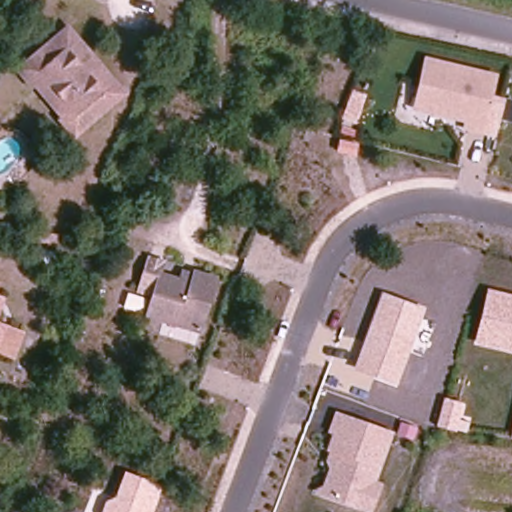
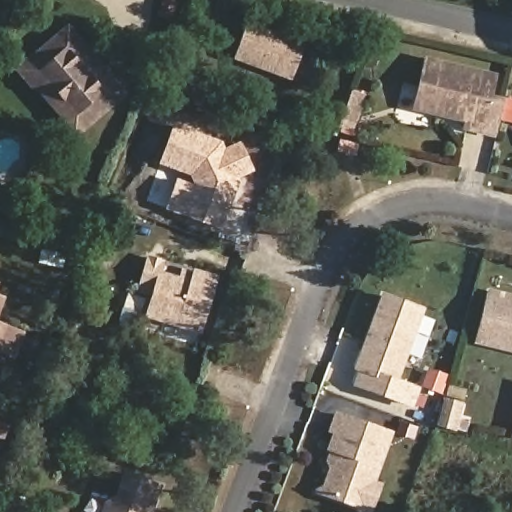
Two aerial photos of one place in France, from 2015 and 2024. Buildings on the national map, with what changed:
new [(290,82),(233,60),(248,20),(305,41),(290,82)]
unchanged [(89,98),(73,112),(36,71),(48,60),(38,48),(64,25),(119,93),(99,109),(89,98)]
unchanged [(70,134),(14,69),(38,48),(48,60),(36,71),(73,112),(89,98),(99,109),(70,134)]
unchanged [(464,132),(464,124),(413,112),(425,59),(496,76),(483,135),(464,132)]
new [(255,171),(240,178),(222,229),(165,210),(177,178),(193,184),(189,176),(159,165),(173,125),(223,142),(225,148),(241,141),(255,171)]
unchanged [(212,297),(199,334),(149,315),(158,293),(138,286),(143,272),(149,257),(174,269),(169,282),(169,284),(186,291),(187,288),(193,273),(217,282),(212,297)]
unchanged [(489,289),(512,295),(512,353),(474,345),(489,289)]
unchanged [(0,309),(0,290),(5,291),(0,309)]
unchanged [(422,309),(394,382),(358,367),(385,298),(422,309)]
unchanged [(0,340),(0,320),(7,322),(0,340)]
new [(462,431),(452,427),(451,430),(434,425),(443,398),(459,404),(454,418),(466,421),(462,431)]
unchanged [(378,482),(384,484),(371,512),(369,512),(315,492),(323,485),(329,469),(325,453),(332,434),(328,433),(335,413),(394,433),(378,482)]
new [(512,423),(512,437),(509,437),(511,428),(512,423)]
unchanged [(104,512),(109,499),(116,498),(125,471),(162,484),(153,512),(104,512)]

